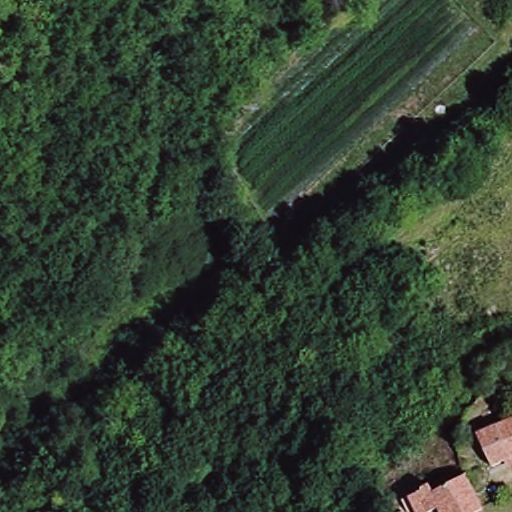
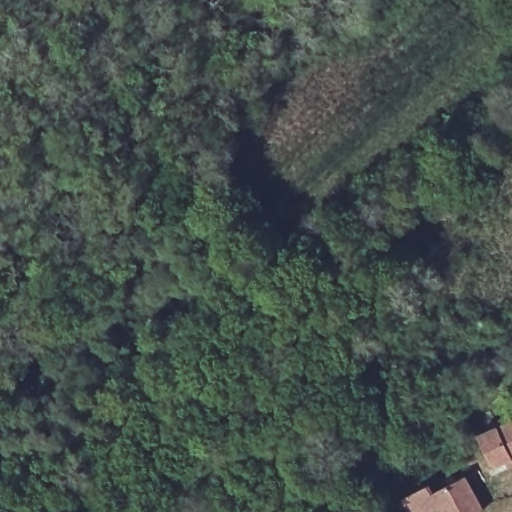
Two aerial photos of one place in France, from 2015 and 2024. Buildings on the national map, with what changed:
unchanged [(512,421),(512,458),(493,466),(478,436),(512,421)]
unchanged [(483,511),(483,512),(441,512),(440,509),(434,512),(413,512),(406,498),(430,486),(433,495),(466,477),(483,511)]

